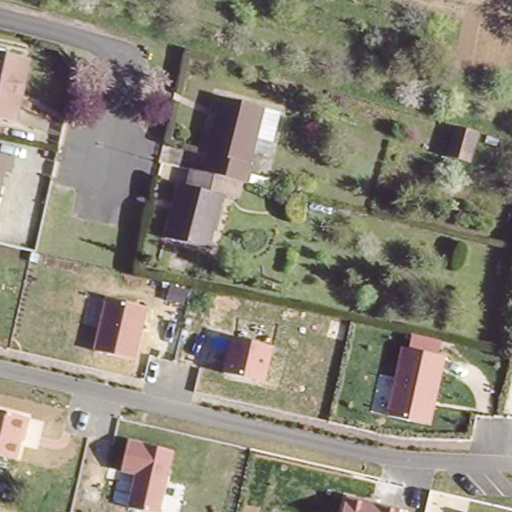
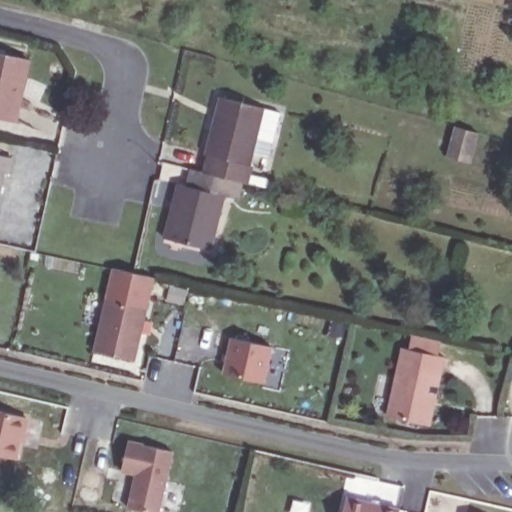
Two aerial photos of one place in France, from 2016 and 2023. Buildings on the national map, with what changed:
unchanged [(24,62),(9,122),(0,120),(0,57),(24,62)]
unchanged [(279,112),(273,138),(256,134),(248,164),(252,165),(248,182),(241,180),(206,172),(211,157),(206,156),(221,98),(279,112)]
unchanged [(470,166),(446,158),(454,127),(479,134),(470,166)]
unchanged [(11,157),(8,173),(1,172),(0,178),(0,154),(11,157)]
unchanged [(191,185),(196,169),(206,172),(241,180),(236,197),(224,194),(209,250),(166,239),(181,182),(191,185)]
unchanged [(3,216),(0,226),(0,216),(3,216)]
unchanged [(104,301),(146,309),(136,363),(93,351),(104,301)]
unchanged [(231,335),(273,345),(264,384),(223,372),(231,335)]
unchanged [(401,347),(444,359),(430,426),(385,415),(401,347)]
unchanged [(28,418),(17,459),(0,455),(0,411),(28,418)]
unchanged [(134,474),(123,472),(130,438),(171,448),(158,512),(145,512),(126,507),(134,474)]
unchanged [(399,510),(399,512),(343,512),(347,495),(399,510)]

